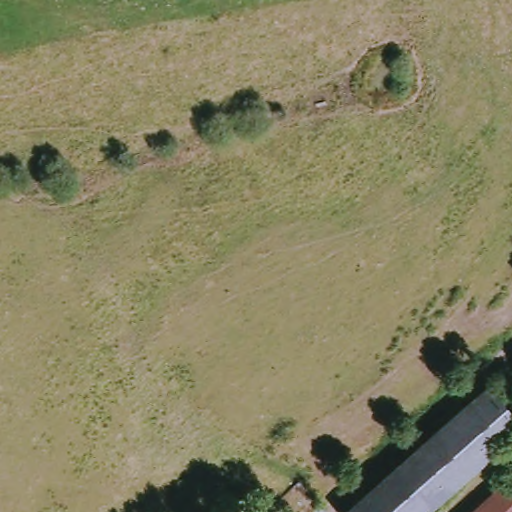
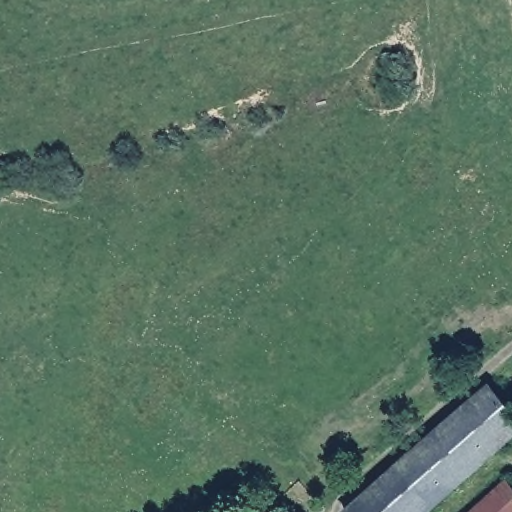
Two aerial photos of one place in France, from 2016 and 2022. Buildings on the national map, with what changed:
unchanged [(351,512),(496,384),(512,404),(512,440),(431,512),(351,512)]
unchanged [(512,478),(512,512),(470,512),(511,477),(512,478)]

